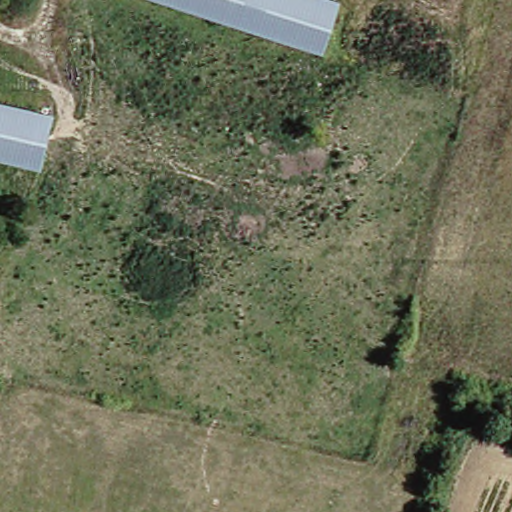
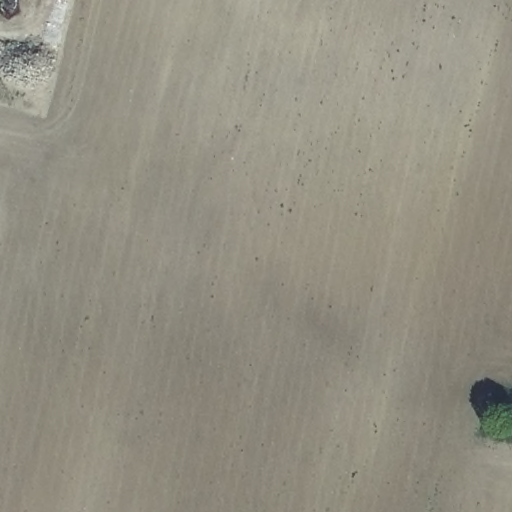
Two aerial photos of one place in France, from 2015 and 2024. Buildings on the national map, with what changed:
demolished [(159,0),(302,0),(332,11),(317,55),(159,0)]
demolished [(0,157),(0,108),(44,117),(33,165),(0,157)]

